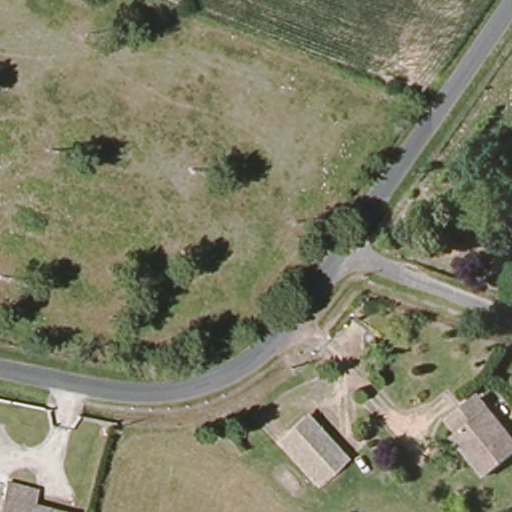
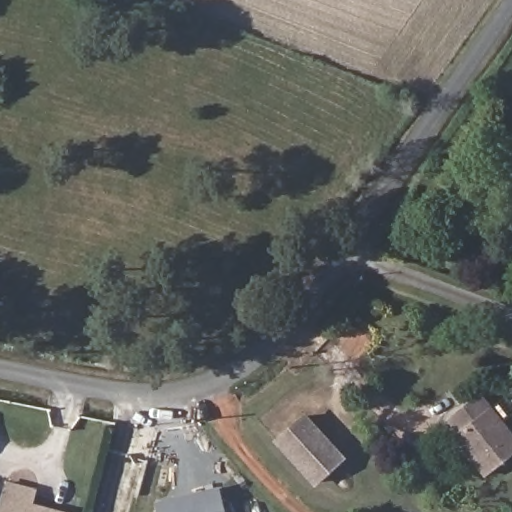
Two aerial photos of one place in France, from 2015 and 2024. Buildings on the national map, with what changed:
unchanged [(512,439),(512,452),(485,474),(453,433),(459,429),(450,418),(477,397),(512,439)]
unchanged [(302,414),(339,454),(312,481),(275,441),(302,414)]
unchanged [(35,492),(31,507),(51,512),(3,512),(6,500),(0,498),(4,483),(35,492)]
new [(222,512),(158,512),(156,504),(216,489),(222,512)]

